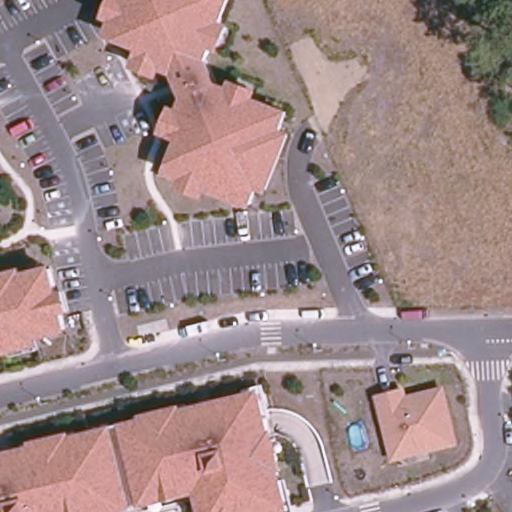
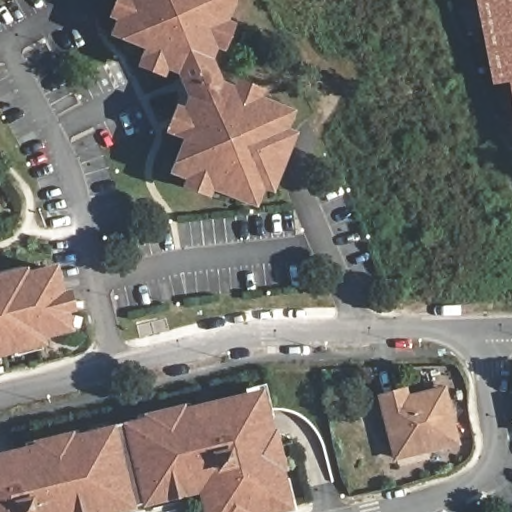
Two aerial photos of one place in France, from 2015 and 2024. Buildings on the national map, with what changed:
unchanged [(259,189),(252,208),(208,190),(205,199),(178,189),(181,180),(165,174),(178,139),(161,134),(172,104),(180,107),(184,98),(174,75),(163,70),(161,77),(132,66),(139,48),(105,35),(110,20),(104,18),(111,0),(232,0),(224,20),(232,23),(221,52),(213,49),(209,60),(219,81),(231,85),(233,79),(261,90),(258,97),(291,110),(285,129),(293,132),(268,193),(259,189)]
new [(504,82),(488,84),(472,0),(512,0),(512,125),(504,82)]
unchanged [(26,270),(54,264),(61,292),(66,290),(71,312),(66,313),(71,331),(41,338),(44,351),(16,358),(14,352),(0,356),(0,271),(24,266),(26,270)]
unchanged [(392,463),(375,394),(406,387),(408,394),(445,386),(460,446),(392,463)]
unchanged [(29,441),(71,431),(71,435),(141,419),(140,414),(181,404),(182,407),(261,389),(270,429),(273,429),(283,471),(280,472),(291,510),(282,512),(200,512),(195,494),(120,512),(0,512),(0,452),(30,444),(29,441)]

